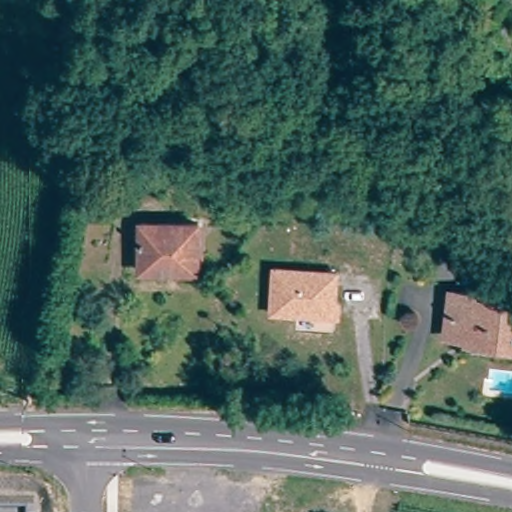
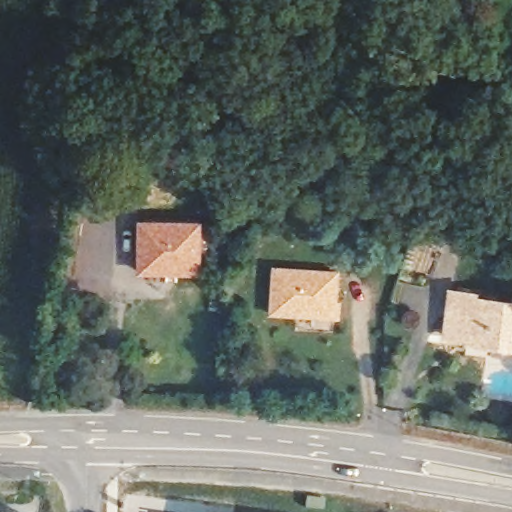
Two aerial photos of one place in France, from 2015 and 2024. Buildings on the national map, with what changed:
unchanged [(429,206),(436,207),(434,218),(428,217),(420,215),(421,205),(429,206)]
unchanged [(140,263),(141,225),(199,226),(198,275),(173,274),(140,273),(140,263)]
unchanged [(340,269),(338,300),(342,301),(340,318),(268,314),(272,266),(340,269)]
unchanged [(508,342),(488,340),(488,346),(469,344),(470,338),(446,335),(450,293),(475,296),(474,304),(512,308),(512,348),(507,348),(508,342)]

